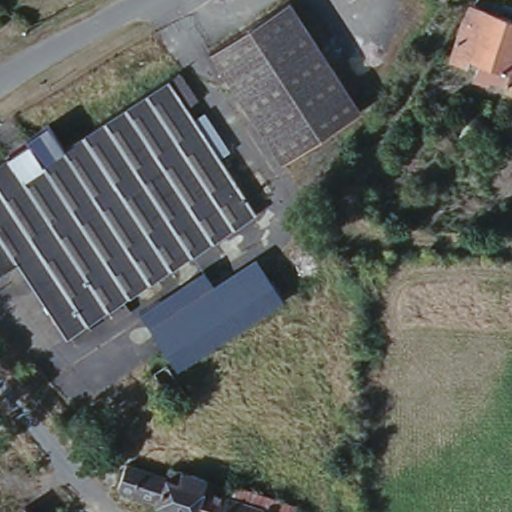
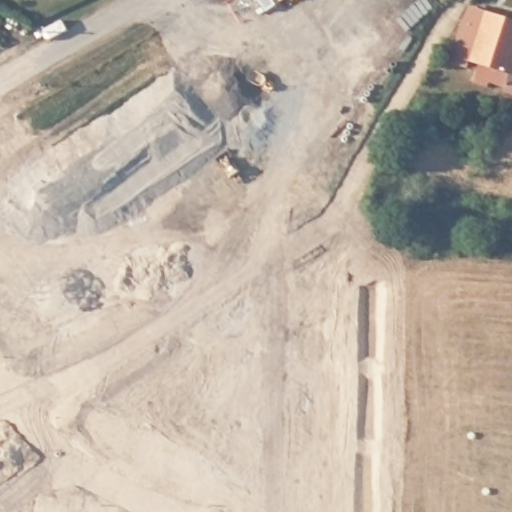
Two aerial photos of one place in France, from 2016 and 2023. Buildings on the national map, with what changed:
unchanged [(438,0),(443,0),(441,2),(438,0)]
demolished [(282,1),(354,112),(276,162),(203,52),(282,1)]
unchanged [(512,17),(512,47),(506,67),(512,69),(512,90),(498,86),(500,81),(482,76),(481,81),(466,76),(472,57),(462,55),(461,62),(444,55),(457,17),(466,1),(512,17)]
demolished [(15,170),(94,118),(172,67),(190,95),(180,102),(250,208),(173,258),(116,296),(123,307),(107,316),(101,306),(80,320),(83,325),(67,336),(62,331),(60,333),(10,257),(0,263),(0,152),(3,151),(15,170)]
demolished [(119,464),(159,477),(162,467),(200,480),(196,489),(224,498),(264,512),(181,512),(111,489),(119,464)]

